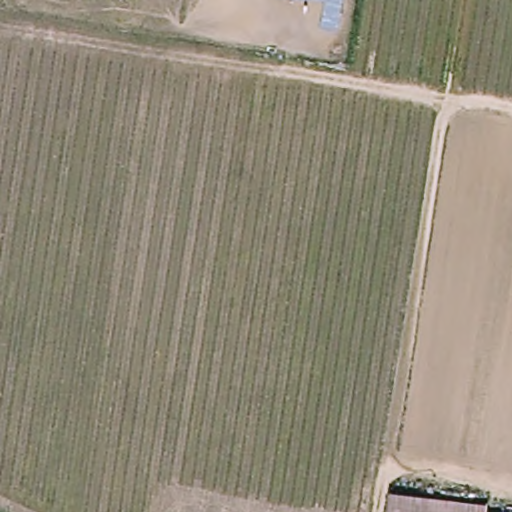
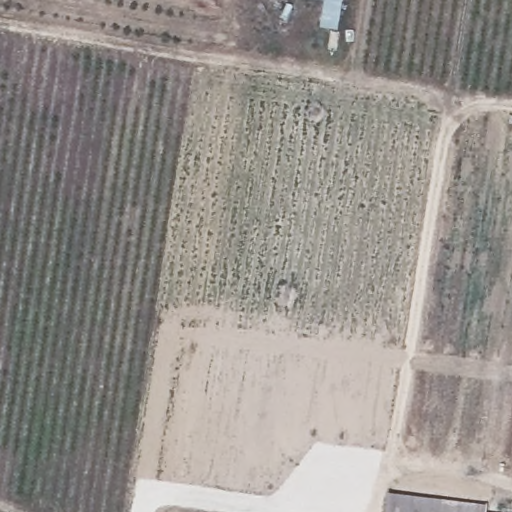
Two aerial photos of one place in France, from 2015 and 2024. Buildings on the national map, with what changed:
unchanged [(301,0),(307,0),(307,1),(301,0)]
unchanged [(320,28),(324,0),(342,0),(336,31),(320,28)]
unchanged [(491,506),(490,512),(389,512),(393,488),(446,498),(491,506)]

